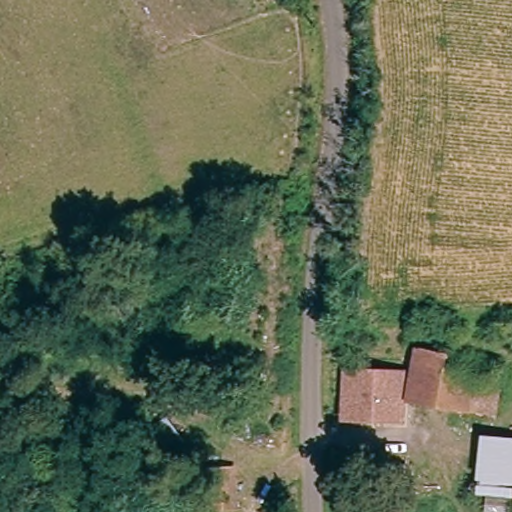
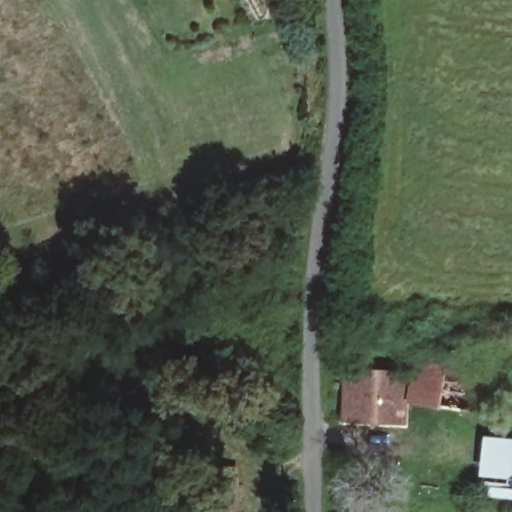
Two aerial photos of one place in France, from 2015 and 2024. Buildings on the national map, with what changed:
unchanged [(408,407),(417,354),(480,364),(475,391),(497,395),(492,421),(471,416),(408,407)]
unchanged [(347,377),(404,381),(402,405),(400,428),(343,423),(347,377)]
unchanged [(472,487),(481,439),(512,441),(512,500),(469,497),(472,487)]
unchanged [(200,493),(189,493),(189,485),(197,485),(197,478),(224,476),(226,512),(201,512),(200,493)]

